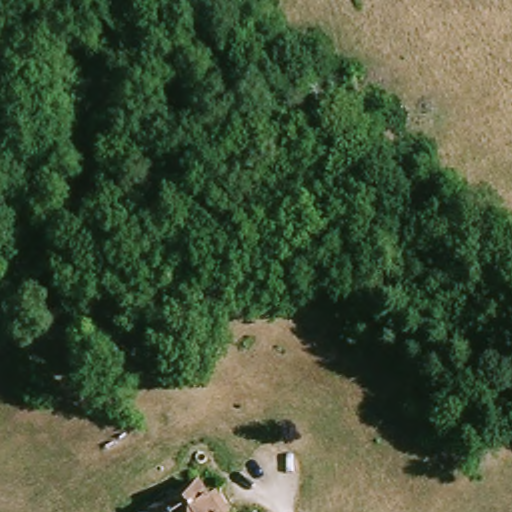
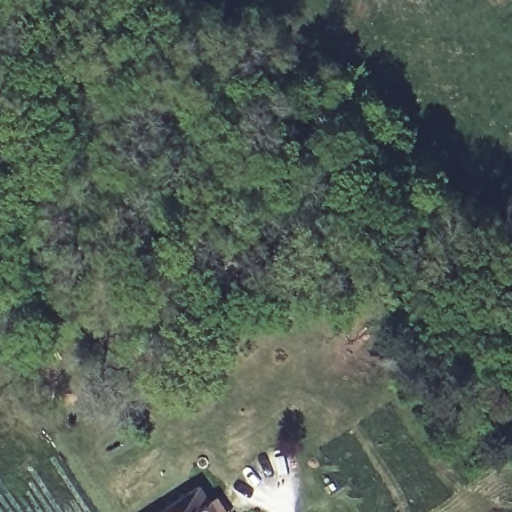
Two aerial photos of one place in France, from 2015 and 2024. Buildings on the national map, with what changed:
unchanged [(403,299),(386,286),(396,272),(414,285),(403,299)]
unchanged [(194,492),(205,509),(212,505),(217,512),(163,512),(194,492)]

